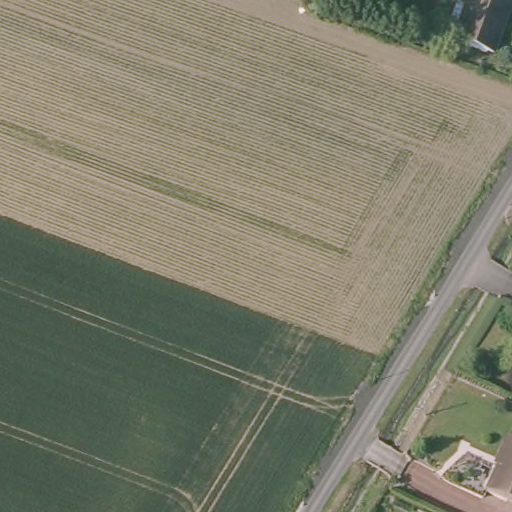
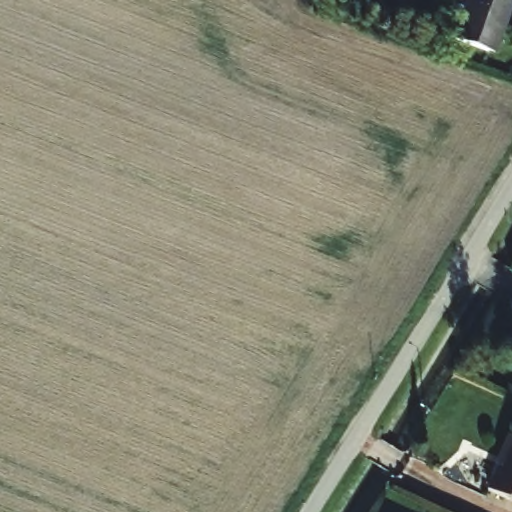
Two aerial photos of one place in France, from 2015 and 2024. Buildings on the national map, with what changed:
unchanged [(512,23),(502,51),(464,36),(476,0),(512,0),(512,23)]
unchanged [(502,466),(499,465),(512,435),(512,499),(492,490),(502,466)]

